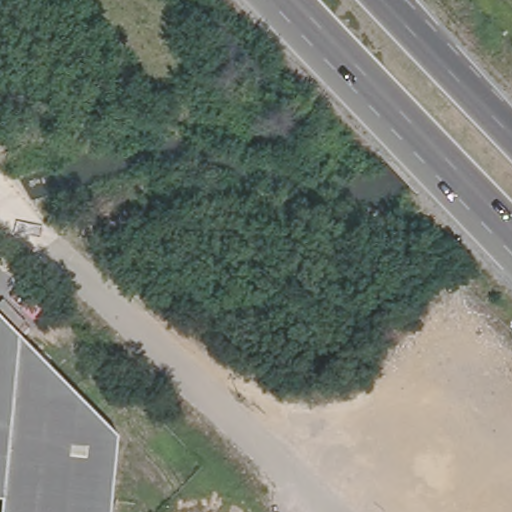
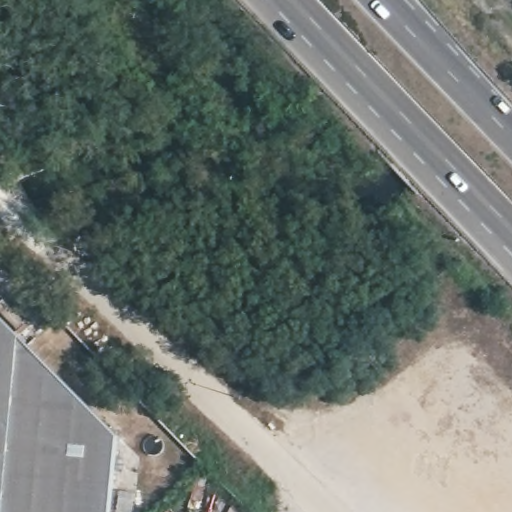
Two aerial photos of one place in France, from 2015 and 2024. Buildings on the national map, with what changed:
unchanged [(8,512),(10,497),(0,496),(0,309),(123,434),(114,512),(8,512)]

